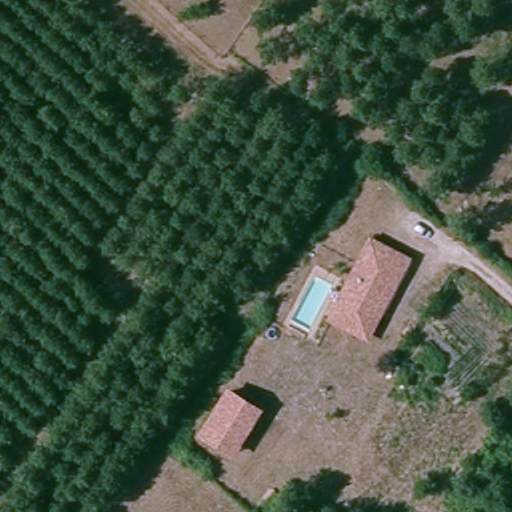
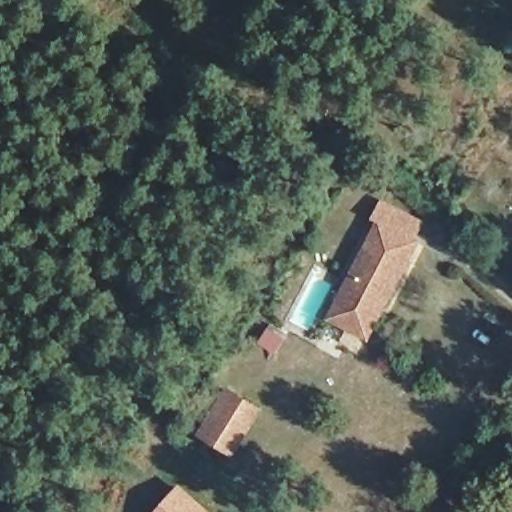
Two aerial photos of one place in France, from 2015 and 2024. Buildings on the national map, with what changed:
new [(424,221),(406,255),(368,236),(377,222),(373,219),(383,199),(424,221)]
unchanged [(329,315),(335,302),(368,236),(406,255),(397,273),(387,292),(381,304),(366,334),(329,315)]
unchanged [(224,385),(265,408),(237,456),(195,433),(224,385)]
new [(155,512),(181,484),(210,512),(155,512)]

